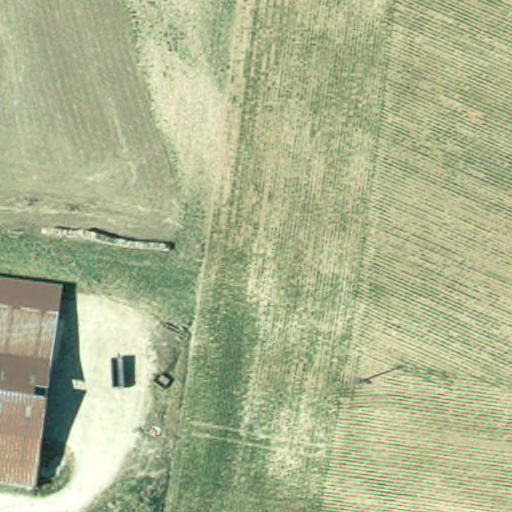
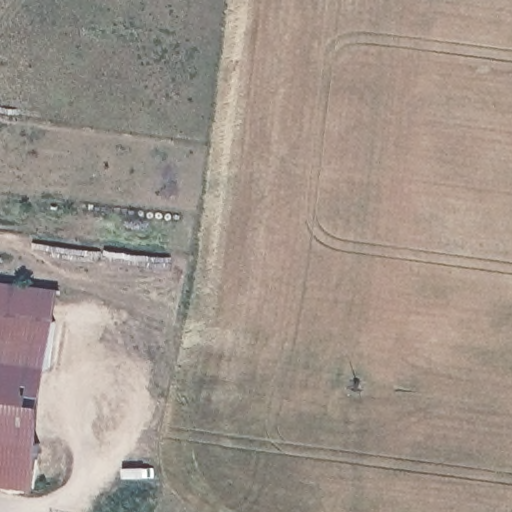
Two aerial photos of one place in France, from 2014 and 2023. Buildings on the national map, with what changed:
unchanged [(44,493),(0,490),(0,285),(58,287),(44,493)]

